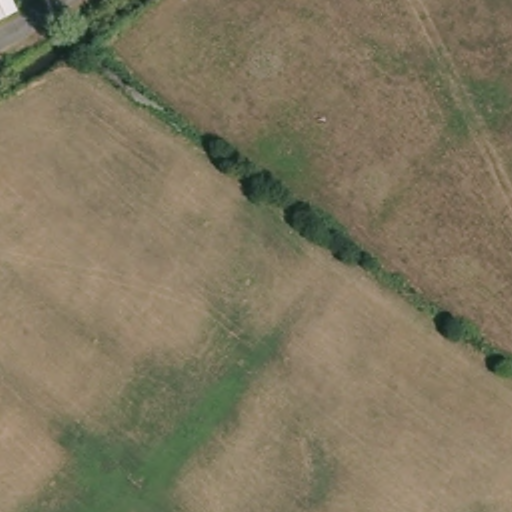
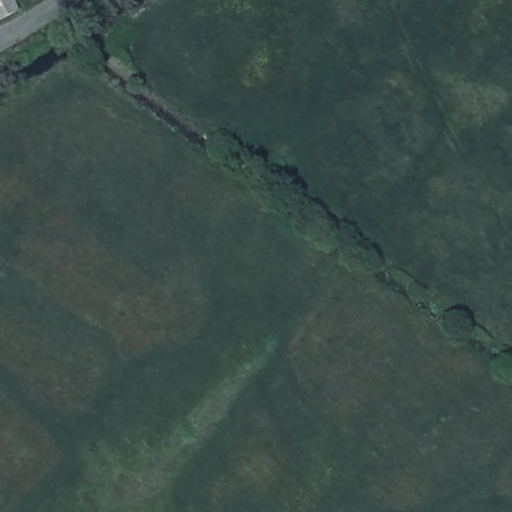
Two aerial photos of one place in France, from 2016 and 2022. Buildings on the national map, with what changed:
unchanged [(0,21),(0,0),(11,0),(16,11),(0,21)]

